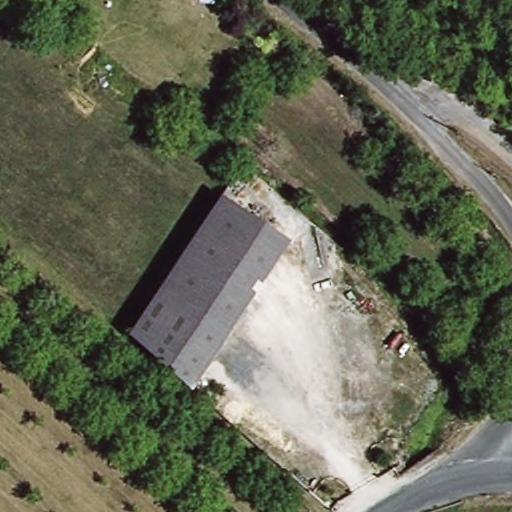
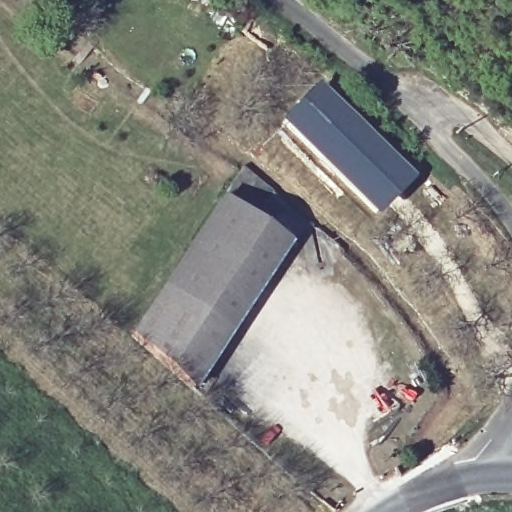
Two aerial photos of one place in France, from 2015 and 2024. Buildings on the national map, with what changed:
new [(322,81),(354,114),(417,175),(379,214),(321,161),(279,119),(322,81)]
unchanged [(301,239),(192,386),(131,333),(234,192),(301,239)]

